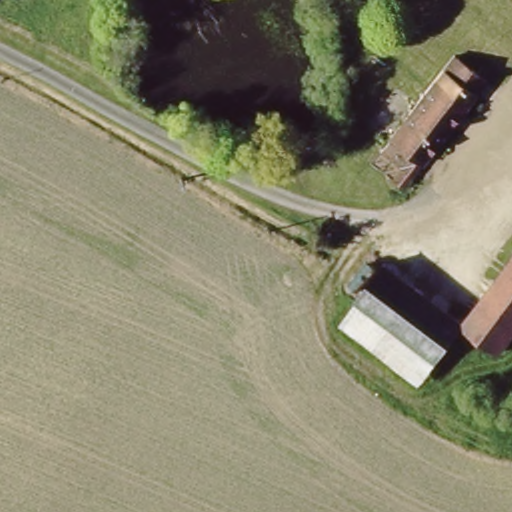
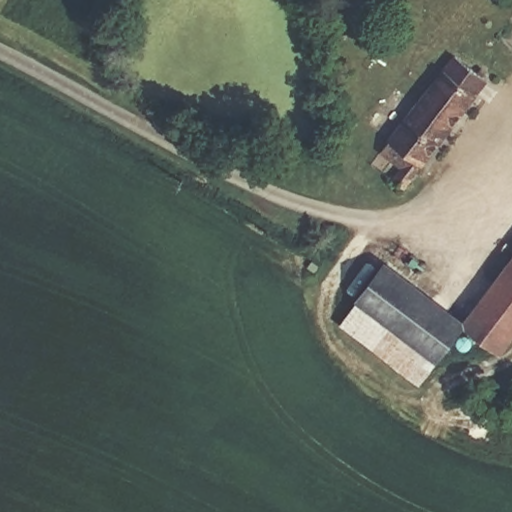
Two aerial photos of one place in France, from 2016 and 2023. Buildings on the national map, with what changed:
unchanged [(370,160),(456,55),(479,74),(407,185),(370,160)]
unchanged [(466,327),(422,387),(338,323),(391,256),(465,314),(512,252),(512,340),(501,355),(466,327)]

